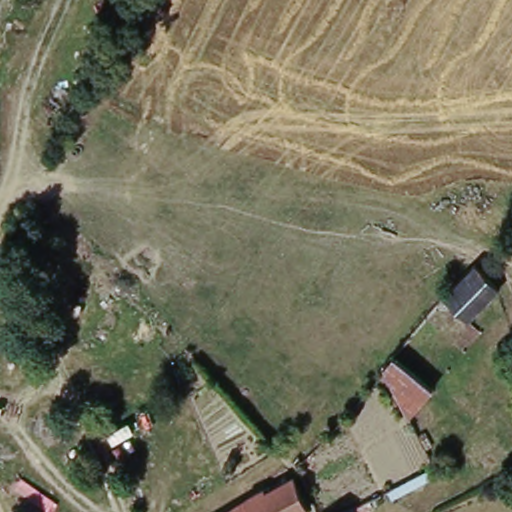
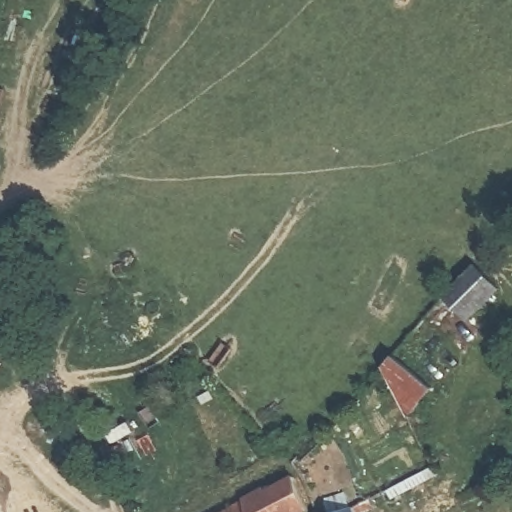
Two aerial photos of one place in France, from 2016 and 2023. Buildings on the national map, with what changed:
unchanged [(472,326),(445,302),(477,267),(482,272),(502,291),(503,296),(472,326)]
unchanged [(427,391),(402,418),(378,365),(388,355),(427,391)]
unchanged [(430,473),(381,498),(378,490),(426,465),(430,473)]
unchanged [(295,484),(307,512),(245,512),(242,507),(265,491),(270,499),(295,484)]
unchanged [(242,507),(245,512),(235,512),(241,508),(242,507)]
unchanged [(355,512),(346,512),(354,509),(355,512)]

